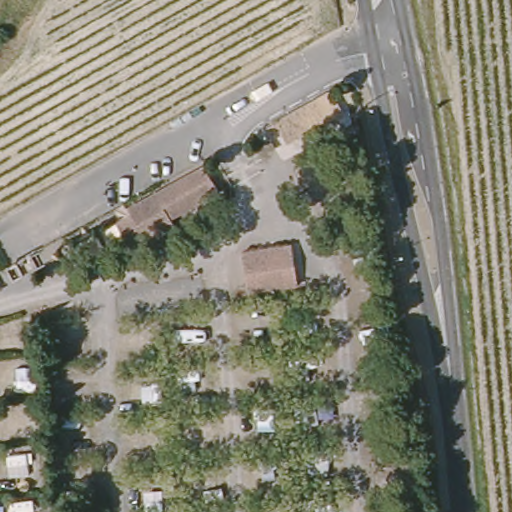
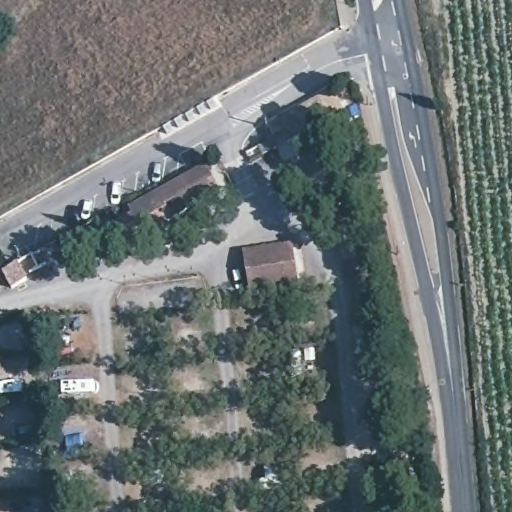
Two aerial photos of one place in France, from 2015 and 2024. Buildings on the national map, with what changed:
unchanged [(349,119),(296,147),(288,133),(277,137),(272,127),(336,94),(349,119)]
unchanged [(285,155),(272,161),(267,150),(279,142),(285,155)]
unchanged [(206,165),(218,186),(164,225),(137,241),(124,213),(206,165)]
unchanged [(299,281),(277,286),(276,283),(249,285),(246,250),(294,245),(299,281)]

